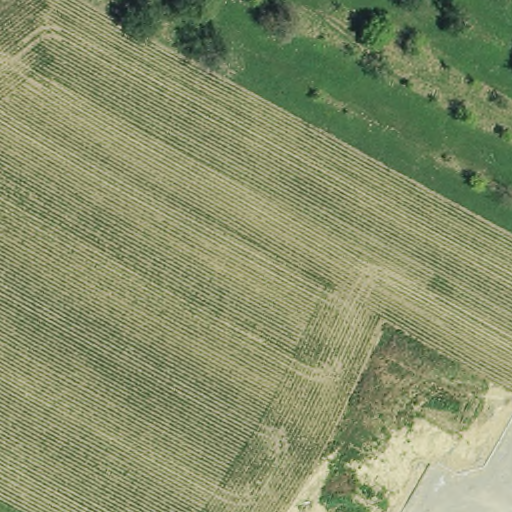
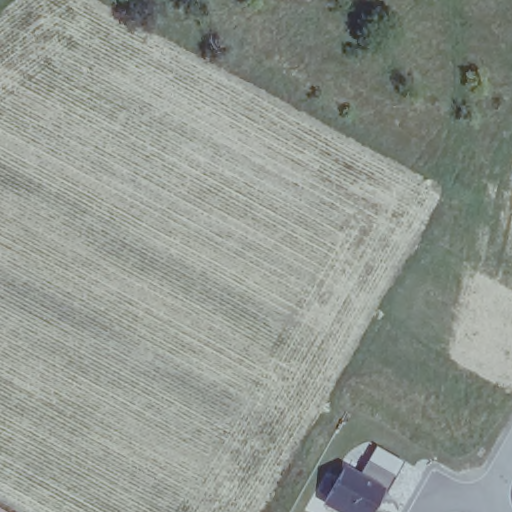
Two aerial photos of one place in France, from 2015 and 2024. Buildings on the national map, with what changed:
new [(373,505),(369,512),(343,512),(325,502),(344,469),(358,477),(367,461),(376,446),(404,462),(395,477),(385,494),(377,508),(373,505)]

